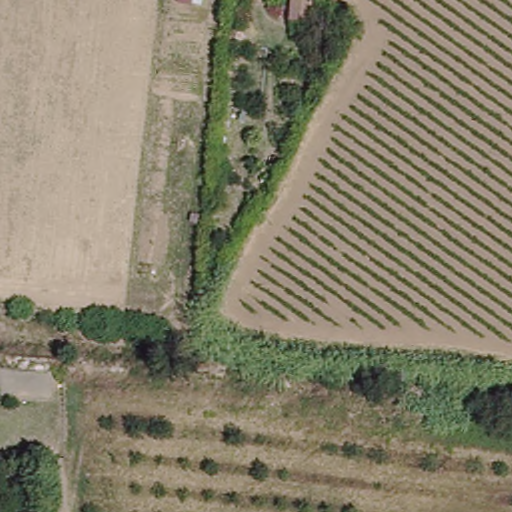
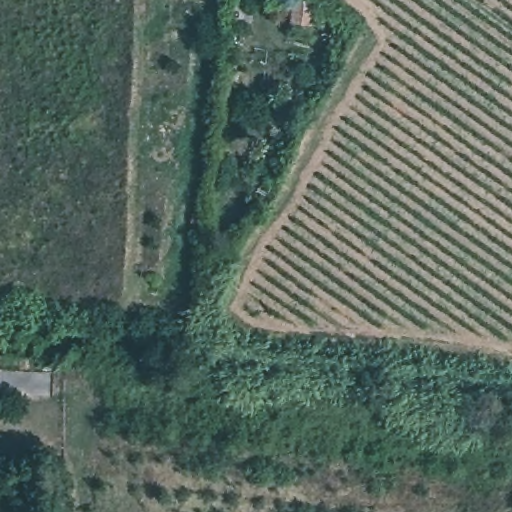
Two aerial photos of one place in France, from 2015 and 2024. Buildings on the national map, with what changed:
unchanged [(287,0),(303,0),(302,8),(286,5),(287,0)]

